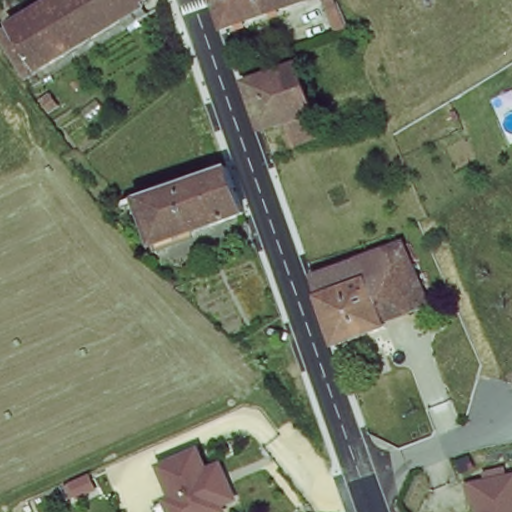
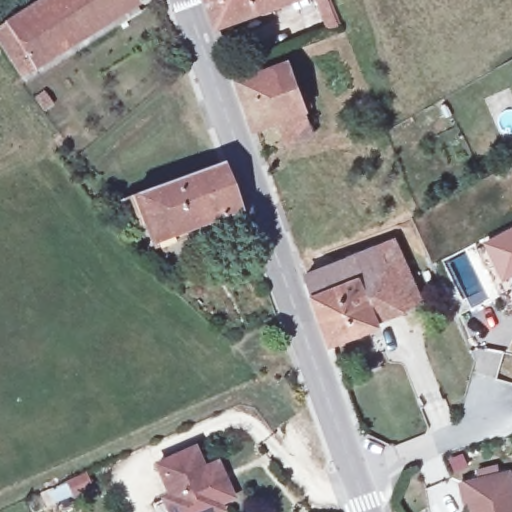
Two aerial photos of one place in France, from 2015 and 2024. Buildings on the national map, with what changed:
unchanged [(3,25),(42,0),(136,0),(31,68),(3,25)]
unchanged [(226,31),(215,0),(280,0),(284,10),(226,31)]
unchanged [(309,0),(284,10),(280,0),(309,0)]
unchanged [(332,11),(327,0),(335,0),(338,9),(332,11)]
unchanged [(286,141),(278,119),(253,128),(237,82),(236,80),(287,62),(304,109),(312,131),(286,141)]
unchanged [(119,206),(121,204),(136,199),(147,195),(225,165),(243,213),(154,246),(148,230),(131,236),(119,206)]
new [(502,281),(483,241),(512,227),(512,276),(502,281)]
unchanged [(376,325),(378,330),(329,348),(305,278),(395,243),(413,291),(420,308),(376,325)]
unchanged [(147,503),(160,497),(167,493),(154,462),(190,446),(199,467),(209,462),(213,460),(221,478),(228,494),(214,500),(218,506),(204,512),(151,512),(147,503)]
unchanged [(508,469),(512,488),(512,512),(467,512),(460,478),(508,469)]

